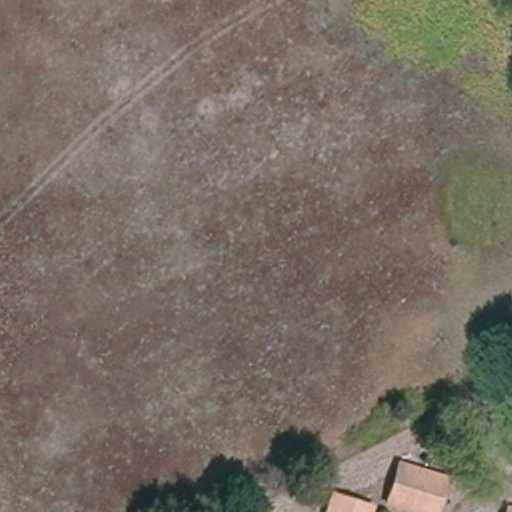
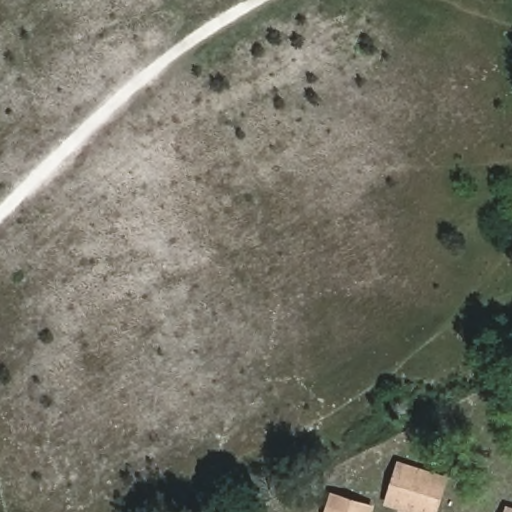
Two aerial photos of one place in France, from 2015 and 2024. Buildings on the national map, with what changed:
unchanged [(433,512),(421,512),(388,502),(400,466),(410,469),(421,473),(433,477),(443,481),(433,512)]
unchanged [(330,502),(333,492),(371,504),(368,512),(326,512),(330,502)]
unchanged [(509,508),(512,508),(512,512),(508,512),(509,508)]

